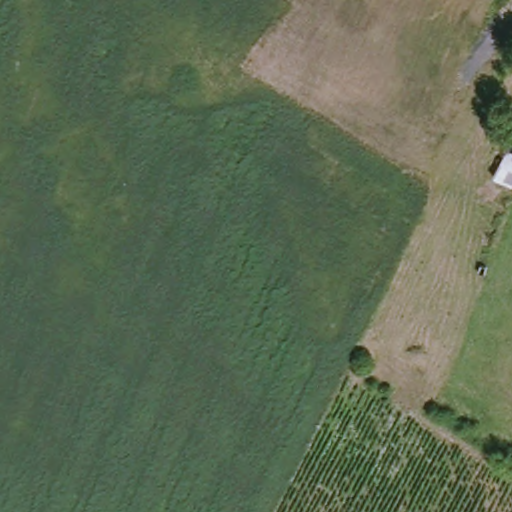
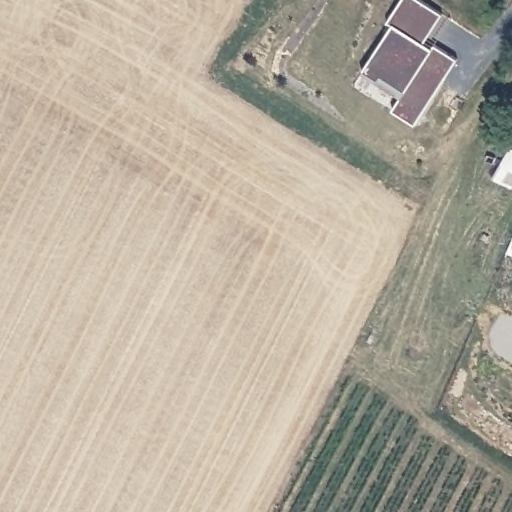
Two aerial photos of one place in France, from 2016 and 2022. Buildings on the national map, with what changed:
new [(402,96),(365,70),(392,24),(388,20),(402,0),(420,0),(442,15),(423,43),(432,50),(435,45),(455,60),(415,122),(393,110),(402,96)]

